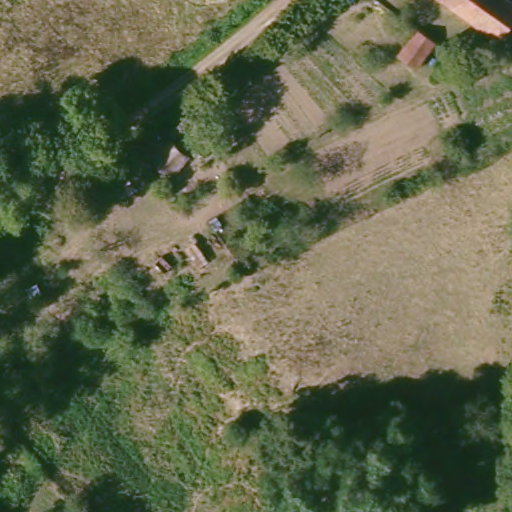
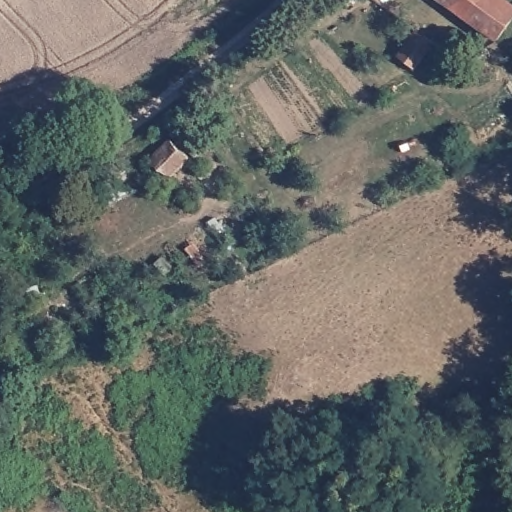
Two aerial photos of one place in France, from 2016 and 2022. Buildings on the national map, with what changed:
unchanged [(512,30),(502,43),(444,0),(508,0),(512,3),(512,30)]
unchanged [(417,67),(403,58),(398,55),(417,32),(434,44),(417,67)]
unchanged [(192,159),(175,176),(158,159),(175,143),(188,155),(192,159)]

